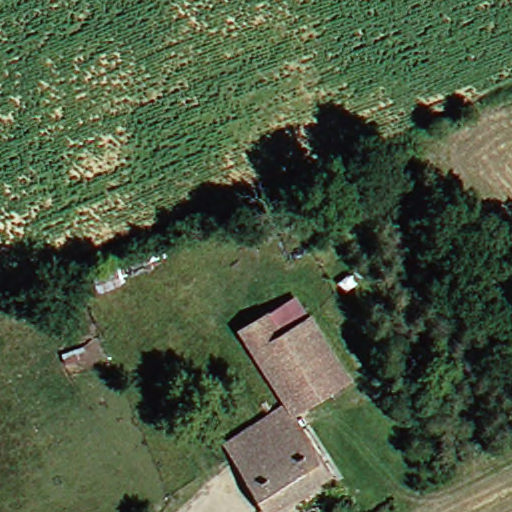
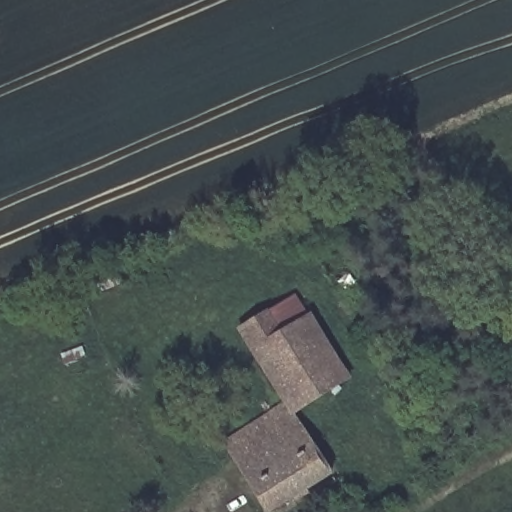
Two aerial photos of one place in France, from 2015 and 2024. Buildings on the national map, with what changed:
unchanged [(256,348),(242,326),(275,308),(286,331),(314,315),(353,380),(297,414),(282,390),(268,397),(242,358),(256,348)]
unchanged [(276,414),(268,397),(282,390),(297,414),(304,427),(242,466),(227,440),(276,414)]
unchanged [(304,427),(330,468),(266,507),(242,466),(304,427)]

